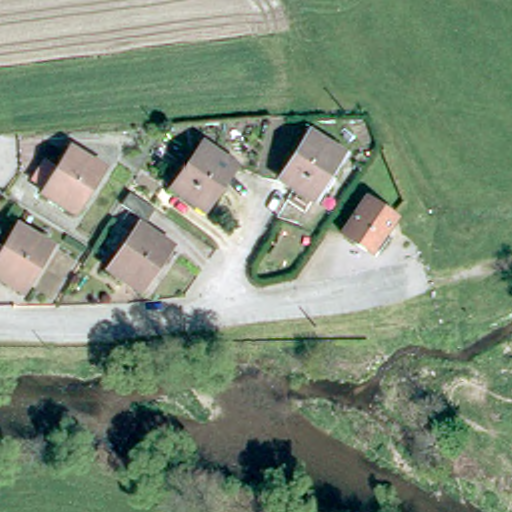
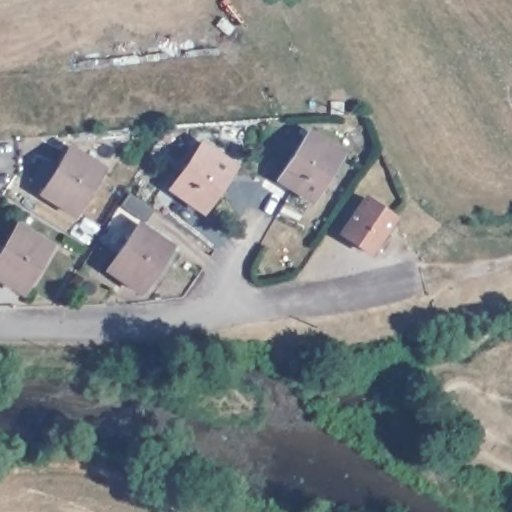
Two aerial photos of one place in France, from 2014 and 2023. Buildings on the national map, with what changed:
unchanged [(308,132),(341,153),(312,199),(279,177),(308,132)]
unchanged [(237,166),(204,212),(170,187),(202,142),(237,166)]
unchanged [(42,192),(45,186),(34,179),(45,160),(57,167),(68,149),(102,169),(75,212),(42,192)]
unchanged [(121,209),(130,197),(154,214),(145,226),(121,209)]
unchanged [(343,235),(367,197),(395,216),(370,252),(343,235)]
unchanged [(52,245),(23,292),(0,278),(0,253),(17,224),(52,245)]
unchanged [(108,273),(138,228),(172,251),(141,296),(108,273)]

